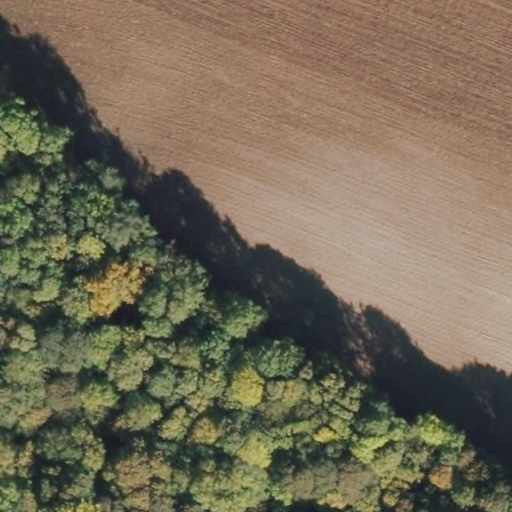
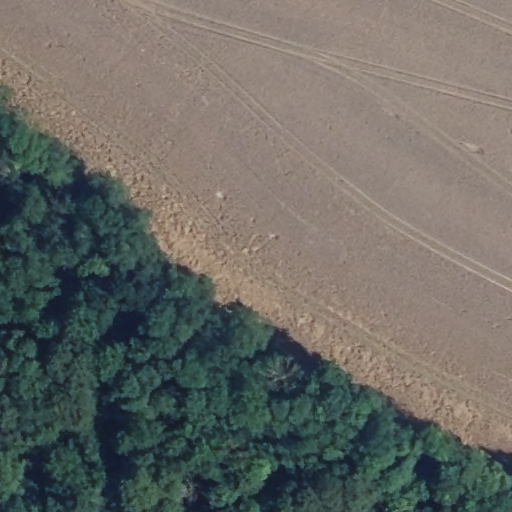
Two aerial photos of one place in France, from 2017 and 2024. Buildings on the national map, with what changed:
unchanged [(310,512),(282,512),(267,505),(279,482),(316,500),(310,512)]

